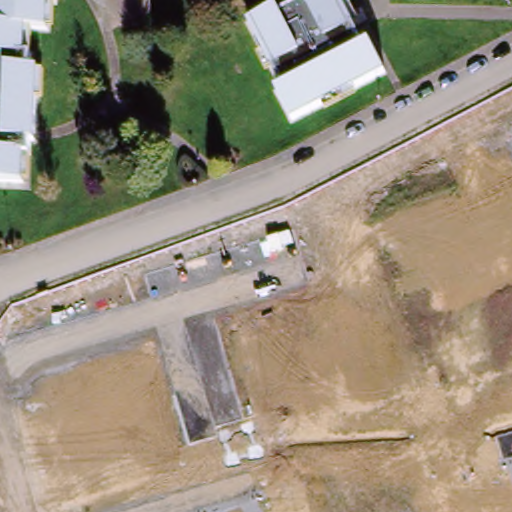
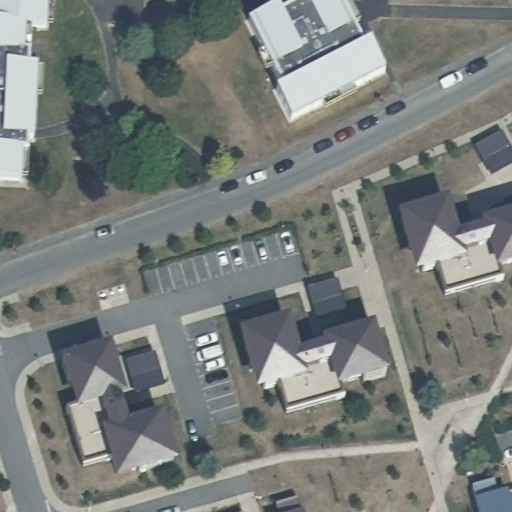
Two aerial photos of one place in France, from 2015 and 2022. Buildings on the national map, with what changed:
unchanged [(53,2),(46,2),(45,30),(25,29),(24,56),(31,56),(30,73),(37,74),(34,140),(29,140),(29,155),(21,154),(19,182),(0,181),(0,0),(53,0),(53,2)]
unchanged [(339,7),(360,48),(367,44),(381,71),(285,120),(272,92),(279,89),(249,28),(273,13),(277,20),(304,7),(300,0),(353,0),(339,7)]
new [(458,238),(482,230),(479,225),(512,216),(512,270),(500,274),(501,280),(445,295),(438,271),(414,278),(395,217),(448,201),(458,238)]
new [(388,379),(340,393),(341,398),(287,413),(280,389),(254,396),(237,334),(289,319),(299,355),(322,347),(320,341),(374,325),(388,379)]
new [(126,400),(121,401),(129,426),(162,415),(177,465),(115,484),(107,457),(84,466),(65,411),(74,405),(61,362),(110,347),(126,400)]
new [(477,512),(474,500),(471,486),(495,480),(499,493),(506,491),(512,489),(512,512),(477,512)]
new [(301,512),(277,512),(275,504),(297,499),(301,511),(301,512)]

